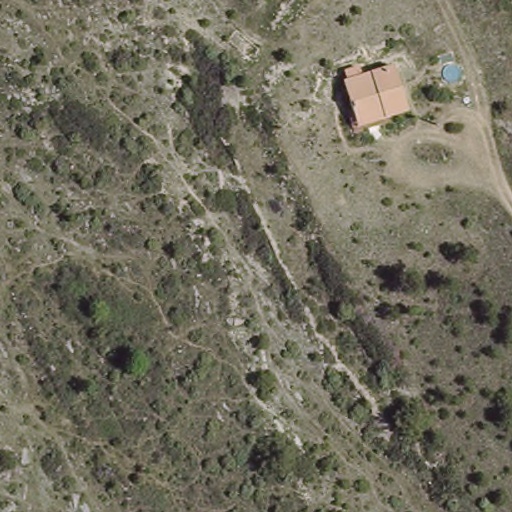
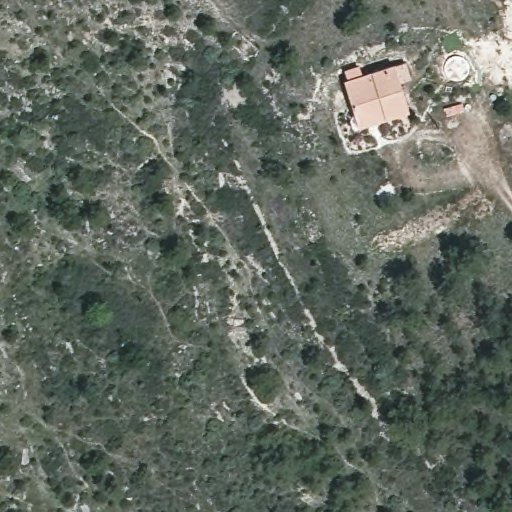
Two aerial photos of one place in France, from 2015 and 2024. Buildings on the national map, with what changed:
unchanged [(407,112),(355,127),(340,79),(390,63),(407,112)]

